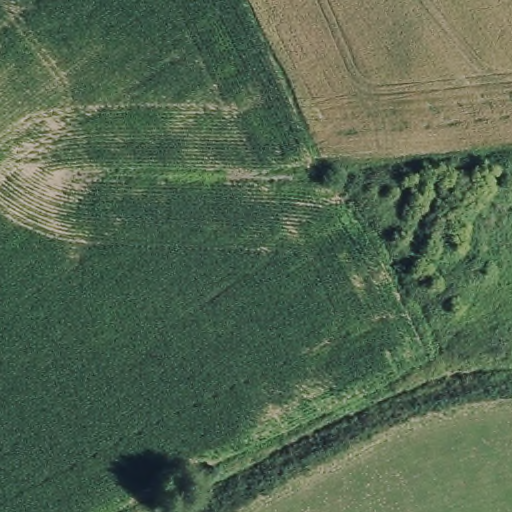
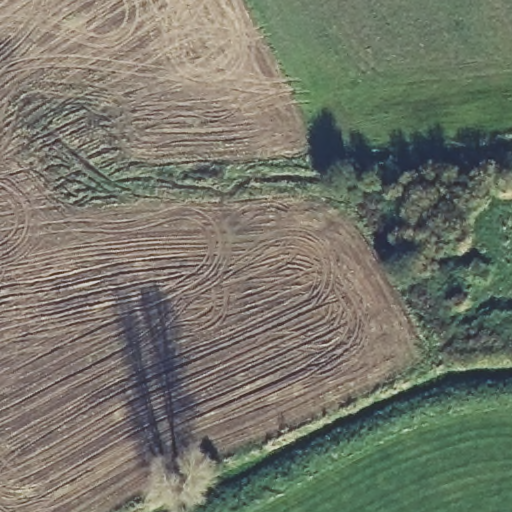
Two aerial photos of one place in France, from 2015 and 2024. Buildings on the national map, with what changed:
[]

